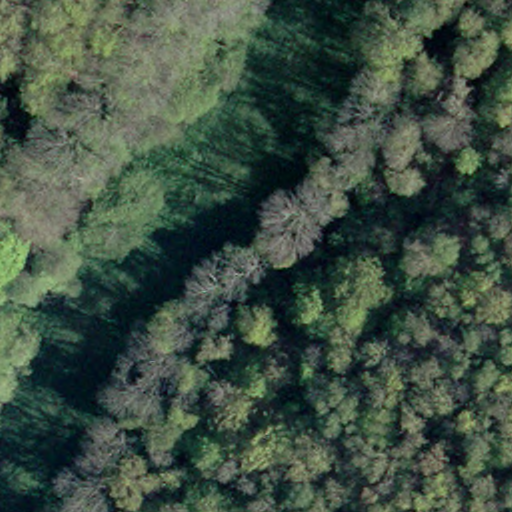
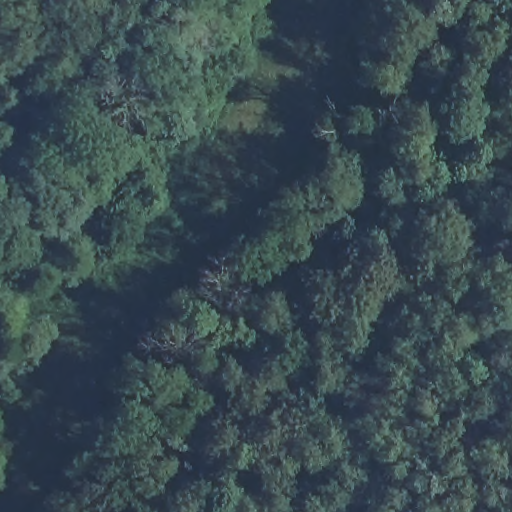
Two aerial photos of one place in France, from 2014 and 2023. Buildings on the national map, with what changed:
[]

